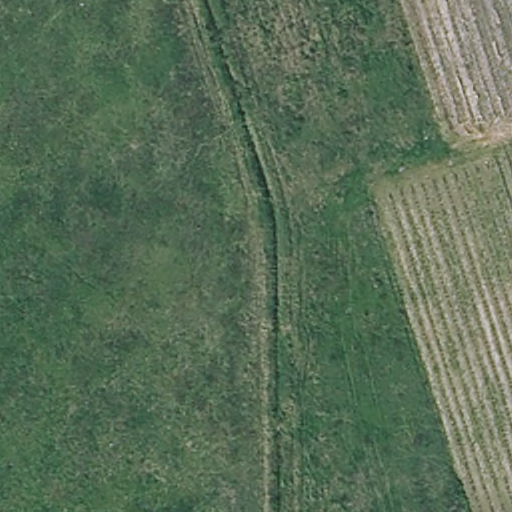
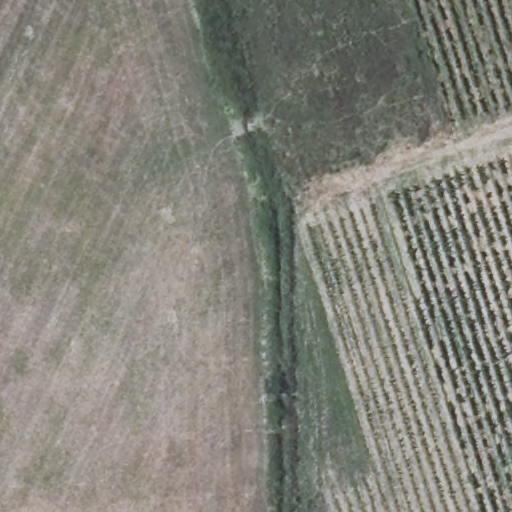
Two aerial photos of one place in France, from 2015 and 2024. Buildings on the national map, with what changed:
[]

